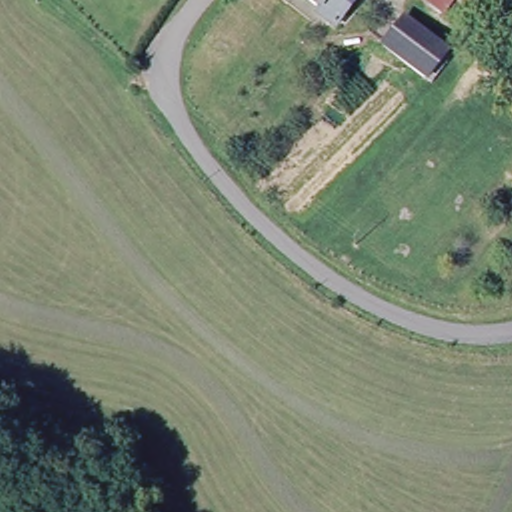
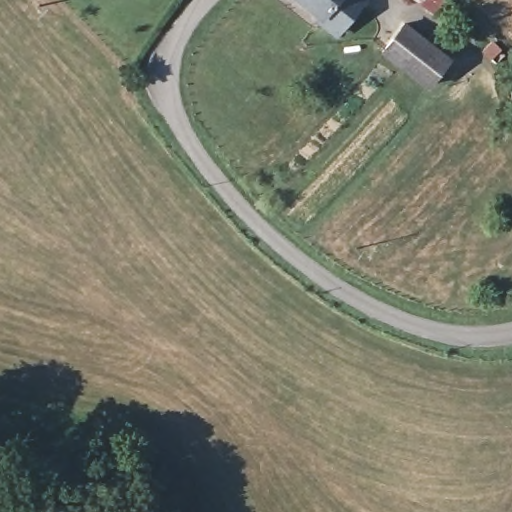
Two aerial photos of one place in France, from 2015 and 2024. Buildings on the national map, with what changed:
unchanged [(302,17),(310,9),(298,0),(356,0),(325,35),(302,17)]
unchanged [(426,87),(387,51),(408,24),(451,62),(426,87)]

